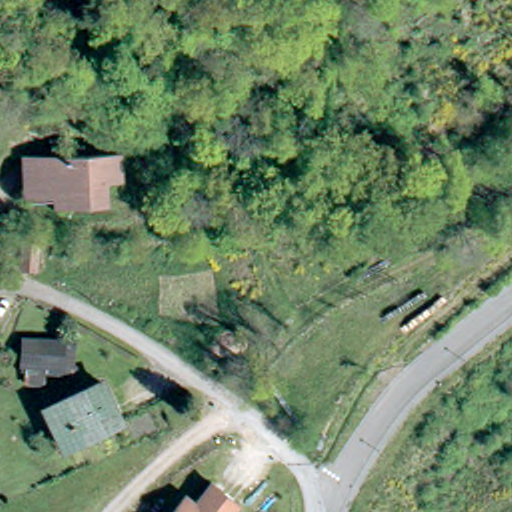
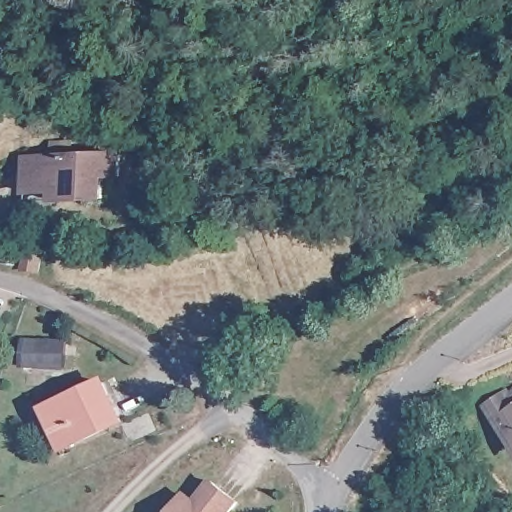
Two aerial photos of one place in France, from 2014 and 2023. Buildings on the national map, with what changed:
unchanged [(28,167),(40,166),(56,166),(56,150),(59,150),(75,149),(76,165),(121,162),(123,183),(116,184),(108,184),(109,206),(85,207),(30,210),(28,167)]
unchanged [(38,253),(38,267),(36,274),(24,272),(28,252),(38,253)]
unchanged [(58,281),(58,266),(80,264),(81,278),(79,282),(58,281)]
unchanged [(102,385),(123,425),(68,451),(49,412),(102,385)]
new [(512,396),(512,454),(481,406),(505,388),(512,396)]
unchanged [(194,508),(210,488),(236,508),(233,512),(176,512),(184,501),(194,508)]

